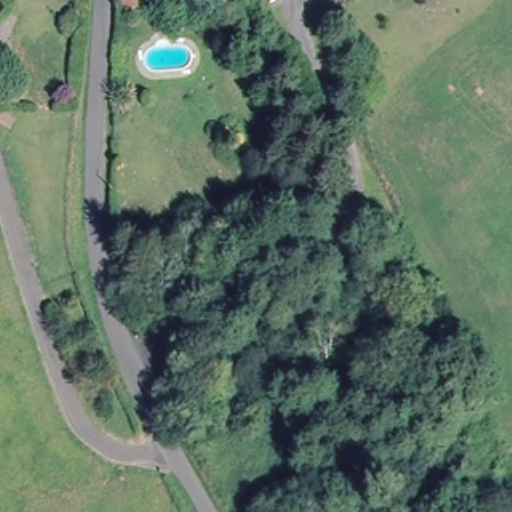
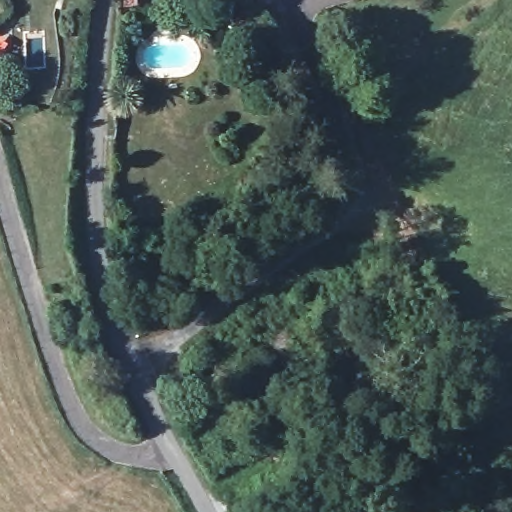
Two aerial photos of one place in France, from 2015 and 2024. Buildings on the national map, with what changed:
unchanged [(138,10),(127,11),(126,0),(136,0),(138,10)]
unchanged [(209,380),(225,416),(203,430),(187,390),(209,380)]

